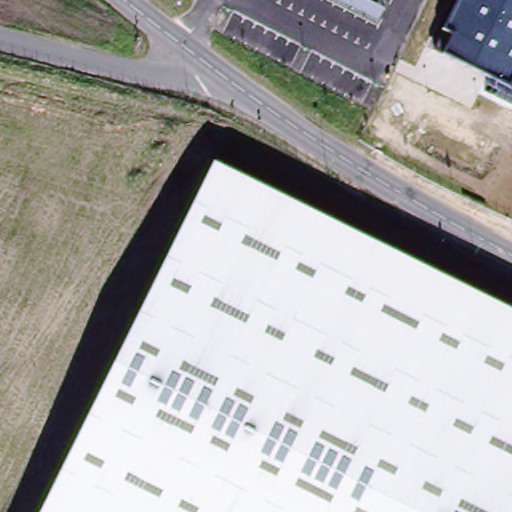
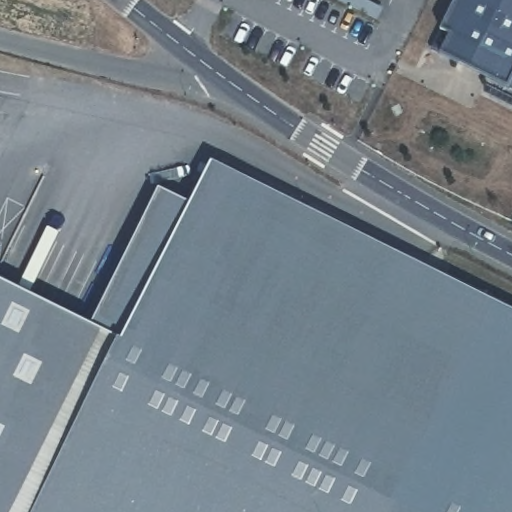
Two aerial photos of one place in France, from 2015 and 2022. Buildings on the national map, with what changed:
unchanged [(441,53),(453,29),(445,25),(458,0),(512,0),(512,79),(508,87),(441,53)]
unchanged [(512,313),(512,512),(42,512),(215,168),(512,313)]
new [(42,512),(0,512),(0,280),(126,343),(42,512)]

